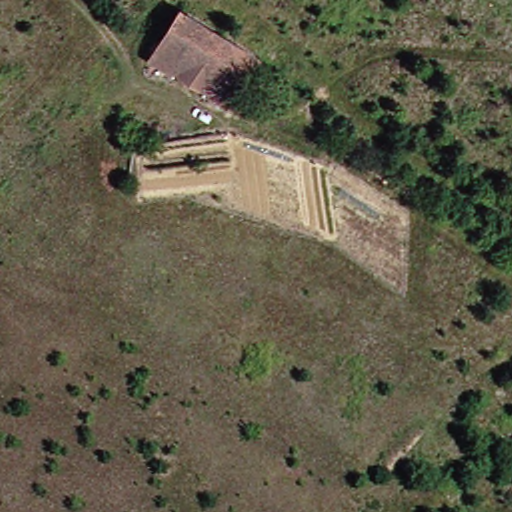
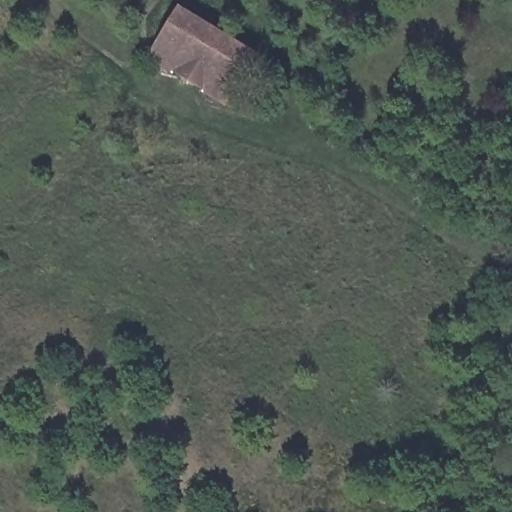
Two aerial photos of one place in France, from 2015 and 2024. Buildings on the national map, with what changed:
unchanged [(148,59),(180,7),(253,53),(222,104),(148,59)]

